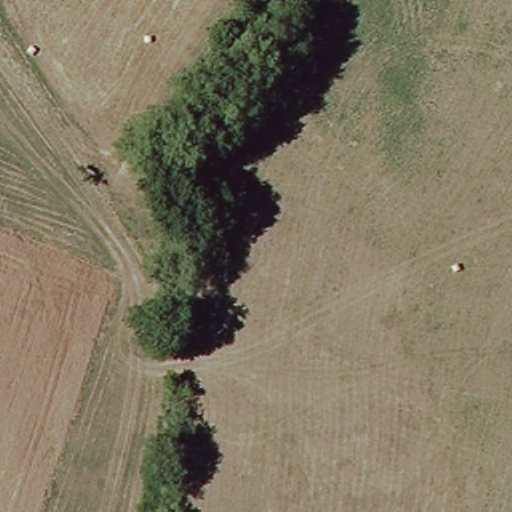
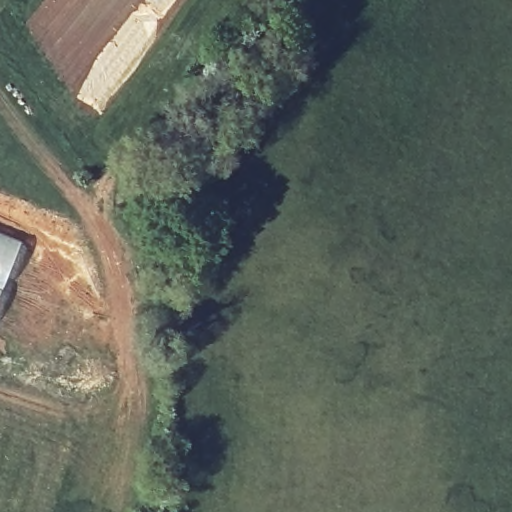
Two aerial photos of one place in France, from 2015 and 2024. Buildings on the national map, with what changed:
new [(23,242),(0,298),(0,232),(23,242)]

